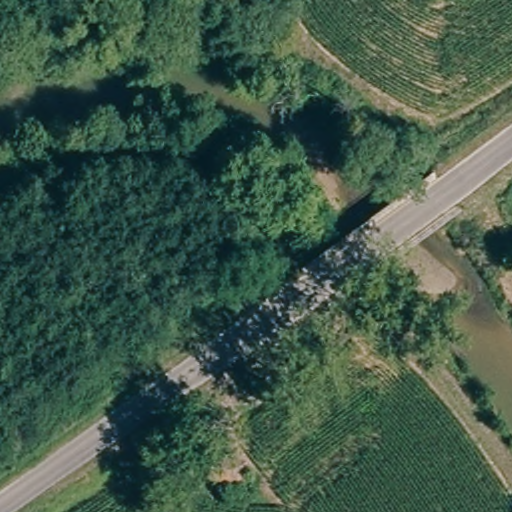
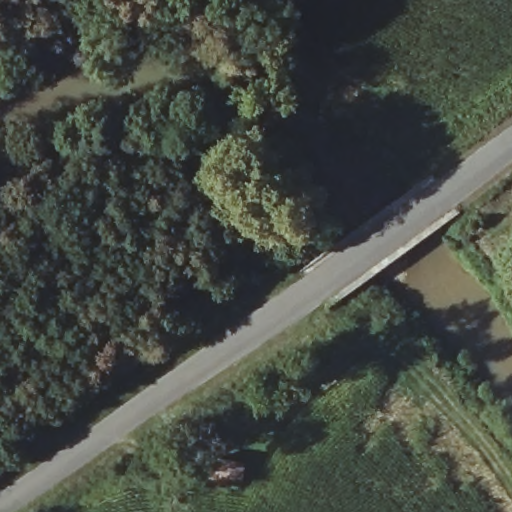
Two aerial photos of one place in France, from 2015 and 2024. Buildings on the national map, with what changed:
unchanged [(216,458),(216,481),(186,481),(186,458),(216,458)]

